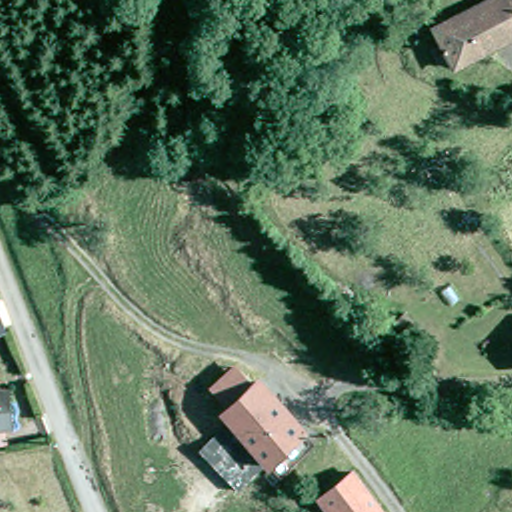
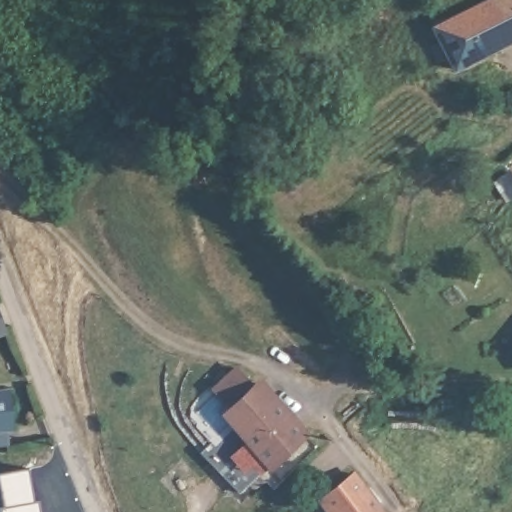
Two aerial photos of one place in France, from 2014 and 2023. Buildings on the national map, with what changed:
unchanged [(512,34),(452,65),(431,25),(480,0),(512,0),(512,34)]
new [(6,330),(0,332),(0,312),(6,330)]
unchanged [(0,434),(0,381),(3,381),(8,415),(3,416),(4,434),(0,434)]
unchanged [(299,431),(264,464),(256,453),(236,428),(238,425),(223,408),(250,382),(260,391),(299,431)]
new [(3,505),(0,491),(0,472),(29,468),(34,501),(39,500),(41,512),(0,512),(0,505),(3,505)]
unchanged [(380,512),(329,512),(316,495),(349,472),(362,487),(380,512)]
demolished [(502,512),(487,512),(497,503),(502,512)]

